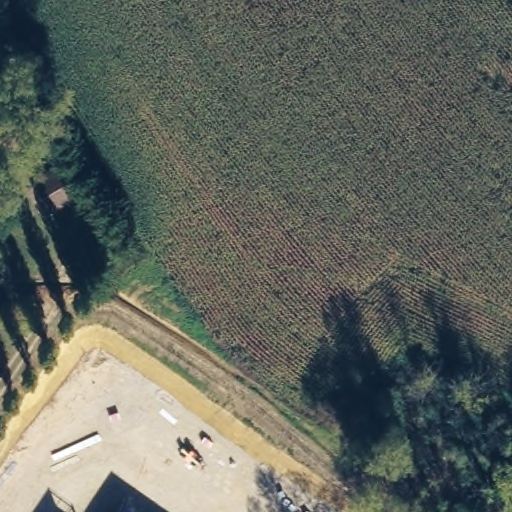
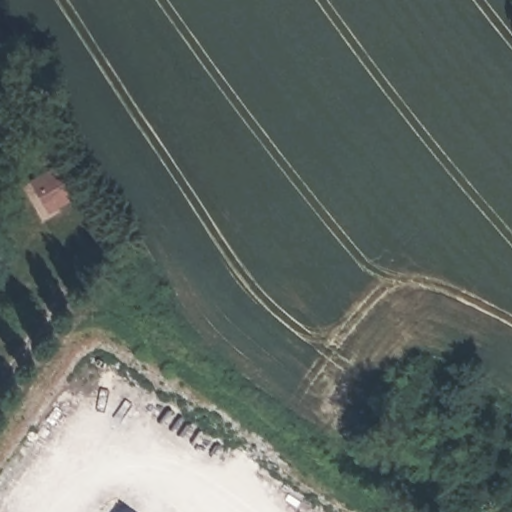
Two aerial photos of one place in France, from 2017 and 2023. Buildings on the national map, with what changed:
unchanged [(59,170),(72,193),(44,206),(32,180),(59,170)]

